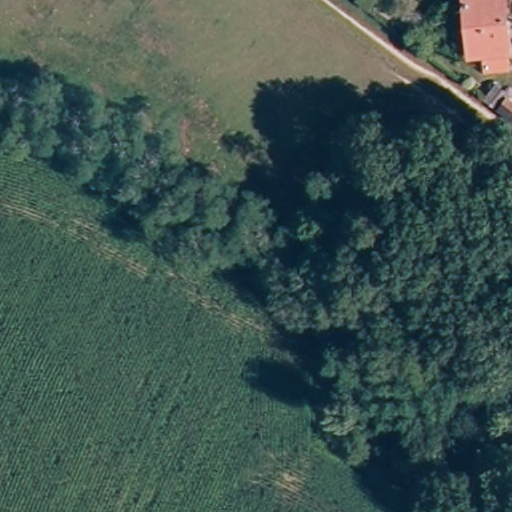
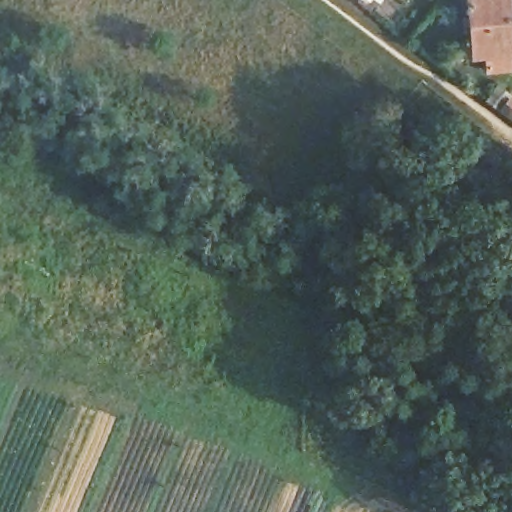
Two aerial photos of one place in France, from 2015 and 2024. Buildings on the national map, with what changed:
unchanged [(483,49),(467,49),(466,0),(499,0),(499,8),(506,8),(508,66),(484,68),(483,49)]

